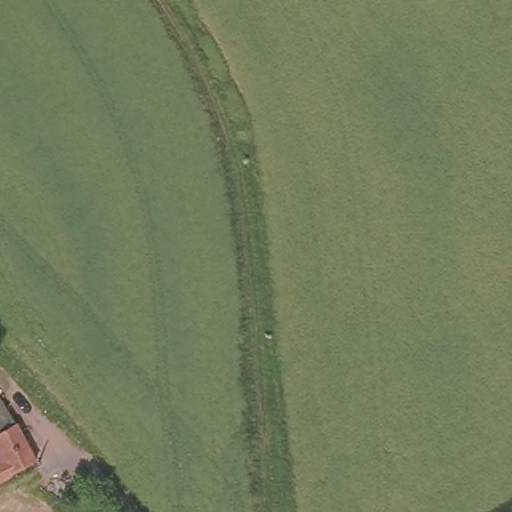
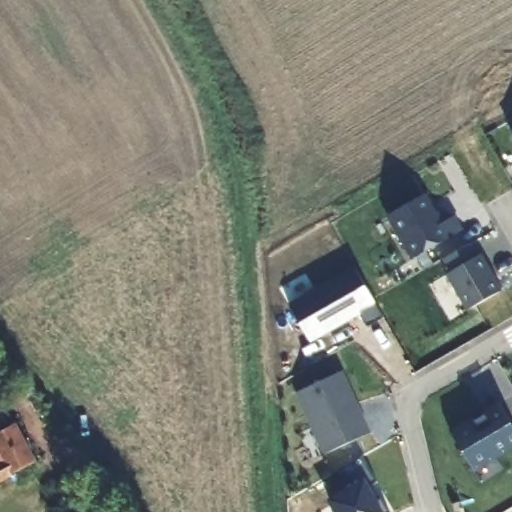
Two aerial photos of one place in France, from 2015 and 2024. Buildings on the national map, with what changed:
new [(387,216),(425,193),(442,223),(456,215),(464,230),(412,260),(387,216)]
new [(475,257),(478,254),(499,290),(465,310),(444,275),(448,272),(440,259),(467,244),(475,257)]
new [(369,326),(360,311),(310,341),(290,305),(354,269),(383,317),(369,326)]
new [(312,461),(300,433),(313,427),(298,391),(342,372),(370,433),(312,461)]
unchanged [(2,398),(20,426),(37,464),(0,482),(0,399),(2,398)]
new [(512,422),(512,446),(472,470),(450,431),(500,403),(512,422)]
new [(361,458),(371,475),(383,512),(335,512),(327,500),(345,490),(335,473),(361,458)]

